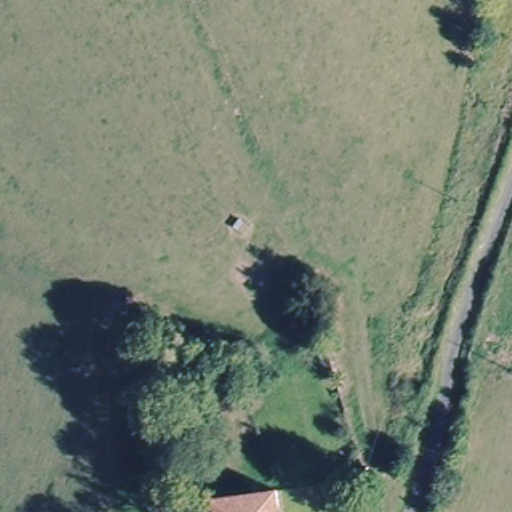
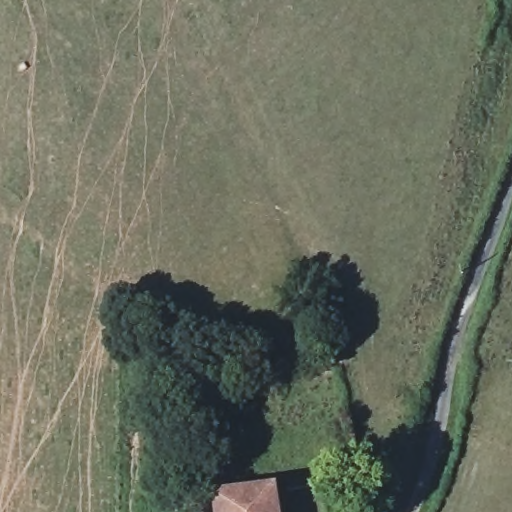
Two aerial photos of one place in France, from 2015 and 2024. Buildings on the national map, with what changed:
unchanged [(189,410),(186,391),(195,390),(219,387),(221,406),(199,408),(189,410)]
unchanged [(212,497),(272,487),(277,512),(214,512),(212,497)]

